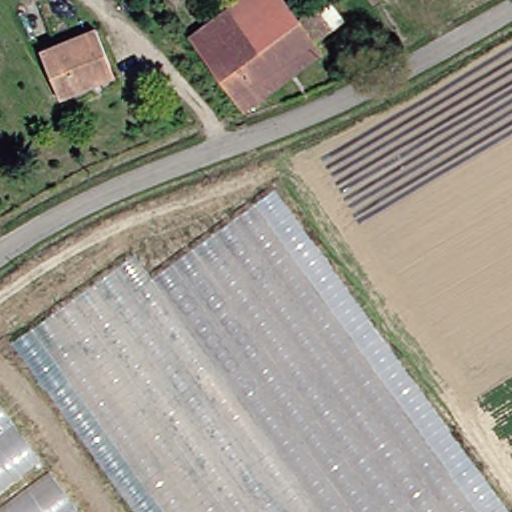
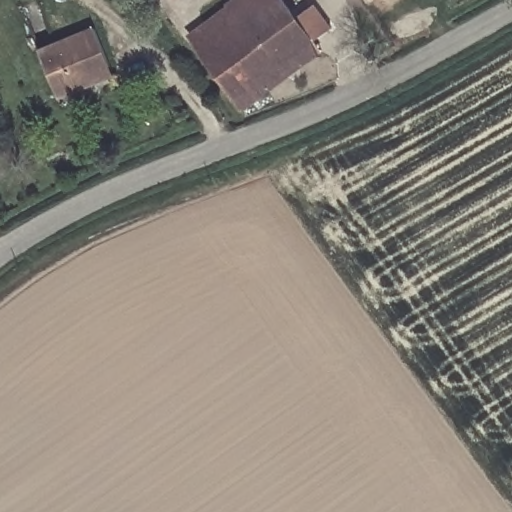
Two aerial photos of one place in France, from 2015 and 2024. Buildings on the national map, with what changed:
unchanged [(193,34),(228,8),(223,0),(287,0),(299,17),(317,4),(334,28),(317,40),(324,49),(247,104),(241,96),(193,34)]
unchanged [(90,81),(53,95),(35,49),(97,24),(110,59),(115,71),(90,81)]
new [(11,344),(134,255),(152,278),(274,190),(509,512),(133,512),(11,344)]
unchanged [(42,454),(0,484),(0,398),(42,454)]
unchanged [(51,470),(83,512),(0,512),(0,509),(51,470)]

